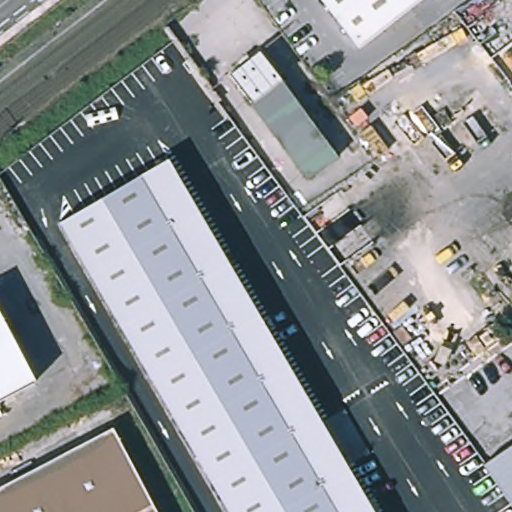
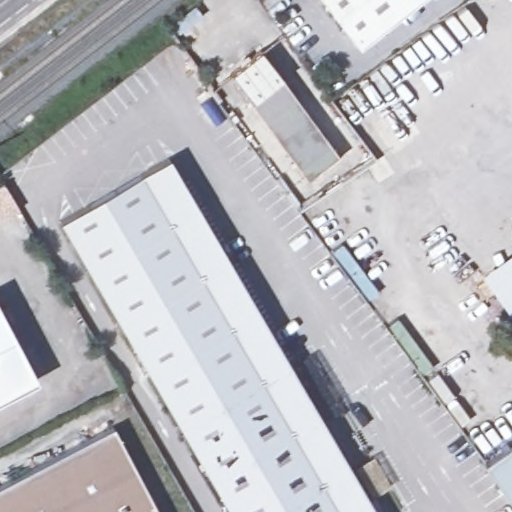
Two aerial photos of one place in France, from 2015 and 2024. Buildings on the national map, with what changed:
unchanged [(356,48),(320,0),(419,0),(356,48)]
unchanged [(251,101),(246,94),(228,72),(238,64),(236,60),(244,53),(248,57),(258,49),(276,73),(279,78),(282,76),(308,111),(338,153),(304,179),(273,136),(248,103),(251,101)]
unchanged [(376,512),(231,512),(67,229),(64,225),(173,162),(376,512)]
new [(512,250),(512,316),(479,273),(512,250)]
unchanged [(0,397),(0,315),(34,378),(0,397)]
unchanged [(157,512),(0,512),(0,480),(108,421),(157,512)]
unchanged [(484,456),(512,439),(512,499),(484,456)]

